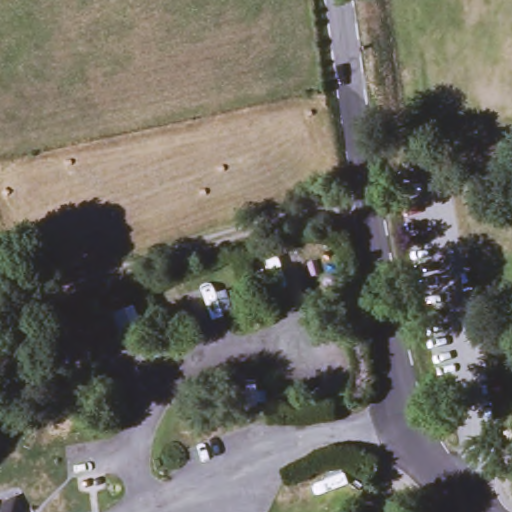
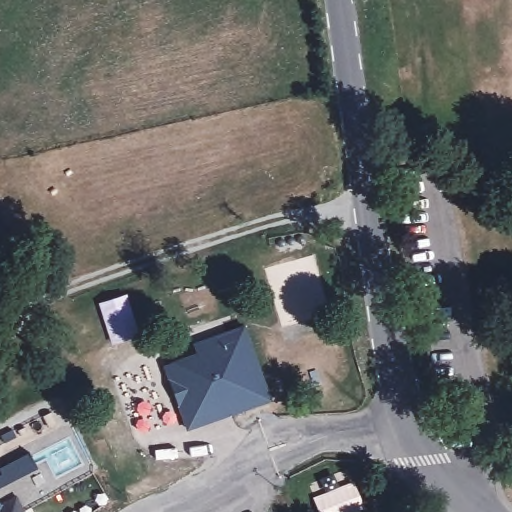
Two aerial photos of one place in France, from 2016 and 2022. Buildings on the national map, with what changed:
new [(164,364),(196,352),(193,343),(245,324),(273,398),(186,429),(164,364)]
new [(36,468),(0,487),(0,475),(2,474),(0,470),(0,467),(29,453),(36,468)]
new [(381,486),(387,474),(393,464),(407,472),(401,481),(395,494),(381,486)]
new [(353,481),(360,499),(333,512),(321,512),(313,498),(353,481)]
demolished [(16,488),(27,512),(0,512),(0,495),(16,488)]
new [(0,504),(16,494),(24,509),(21,512),(0,512),(0,503),(0,504)]

